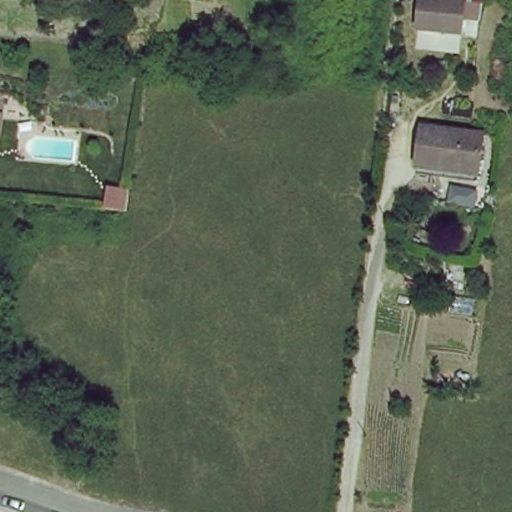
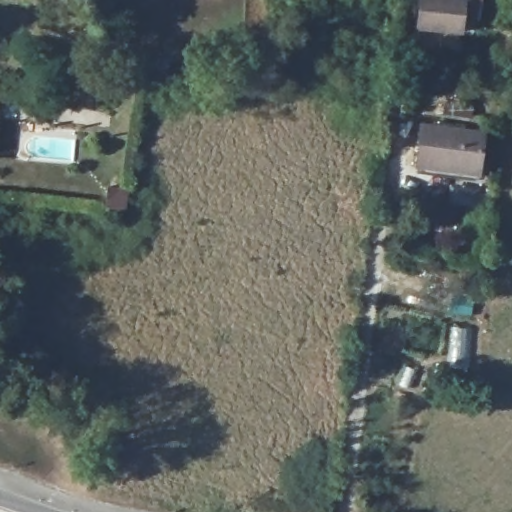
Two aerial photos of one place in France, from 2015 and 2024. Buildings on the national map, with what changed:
unchanged [(421,30),(421,0),(461,0),(461,31),(421,30)]
unchanged [(416,164),(420,125),(483,133),(479,172),(416,164)]

